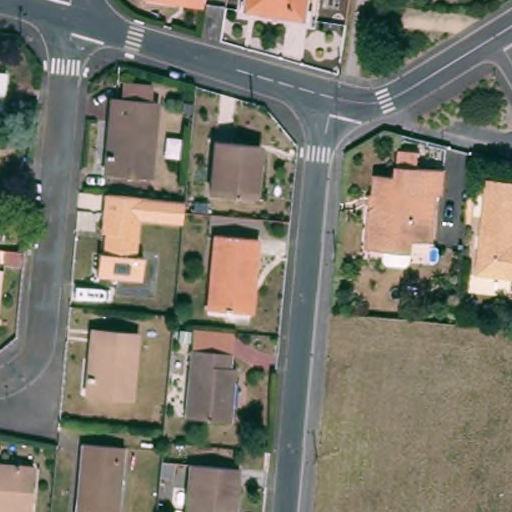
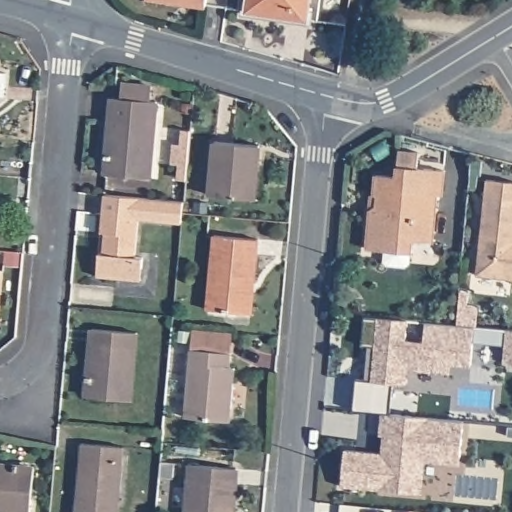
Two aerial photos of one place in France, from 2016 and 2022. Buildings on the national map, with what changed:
unchanged [(211,4),(185,0),(212,0),(211,4)]
unchanged [(254,9),(255,0),(315,0),(312,23),(272,17),(253,15),(254,9)]
unchanged [(3,59),(3,69),(12,70),(9,96),(0,94),(0,59),(3,59)]
unchanged [(115,120),(118,120),(120,97),(125,97),(127,82),(157,86),(156,100),(161,101),(155,177),(110,174),(112,154),(114,137),(115,120)]
new [(173,141),(181,141),(182,126),(189,127),(185,177),(177,176),(179,161),(171,161),(173,141)]
unchanged [(264,145),(260,199),(216,195),(220,141),(264,145)]
unchanged [(402,177),(404,151),(424,152),(423,167),(451,170),(448,194),(443,194),(438,242),(417,239),(416,252),(415,262),(411,265),(393,263),(390,260),(391,250),(372,248),(375,208),(382,205),(383,196),(379,196),(381,175),(402,177)]
unchanged [(512,181),(512,279),(498,277),(480,276),(491,178),(512,181)]
unchanged [(188,201),(187,209),(187,211),(186,221),(143,217),(139,256),(149,257),(147,279),(103,275),(105,252),(109,252),(111,232),(106,232),(108,214),(110,193),(188,201)]
unchanged [(256,312),(213,308),(220,235),(263,239),(260,271),(258,293),(256,312)]
unchanged [(2,268),(0,288),(0,268),(2,268)]
new [(450,373),(408,369),(407,384),(394,383),(391,413),(382,413),(355,410),(358,380),(367,380),(370,347),(363,347),(366,317),(410,321),(408,341),(426,343),(428,323),(474,327),(471,366),(470,375),(450,373)]
unchanged [(97,343),(94,343),(96,328),(142,332),(136,400),(92,396),(94,376),(95,360),(97,343)]
unchanged [(235,421),(190,417),(195,348),(197,328),(238,332),(236,352),(235,367),(240,367),(238,383),(237,402),(235,421)]
new [(512,331),(512,365),(503,364),(506,330),(512,331)]
new [(402,492),(341,486),(345,450),(382,452),(384,435),(380,435),(382,413),(391,413),(464,421),(461,457),(460,465),(439,462),(425,461),(423,479),(422,493),(402,492)]
unchanged [(123,512),(82,512),(87,444),(129,447),(123,512)]
unchanged [(243,468),(242,482),(239,484),(238,498),(237,512),(191,512),(195,463),(243,468)]
unchanged [(29,512),(0,510),(0,466),(19,467),(38,469),(35,512),(29,512)]

